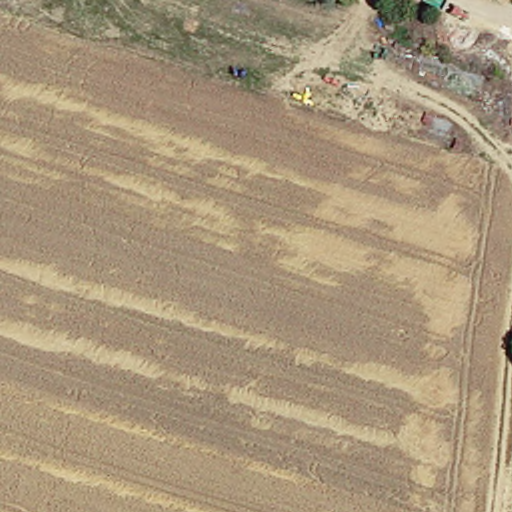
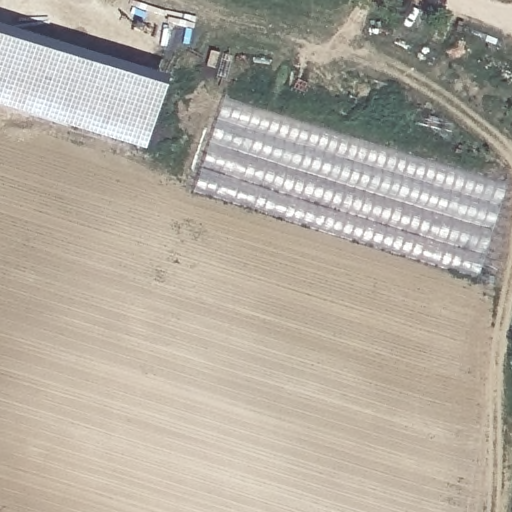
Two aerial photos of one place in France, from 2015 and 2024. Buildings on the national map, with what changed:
new [(0,108),(0,27),(162,77),(141,151),(0,108)]
new [(473,279),(191,194),(221,99),(503,187),(473,279)]

